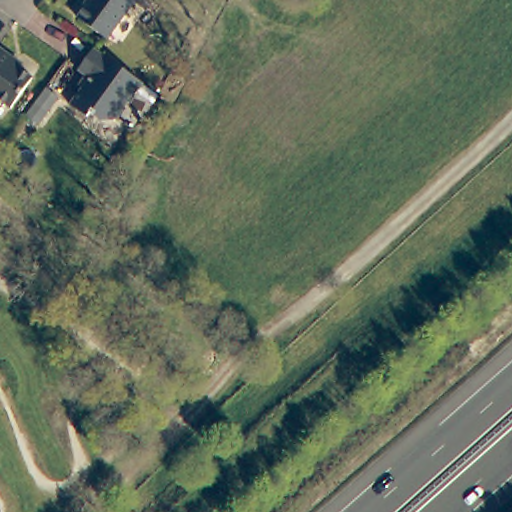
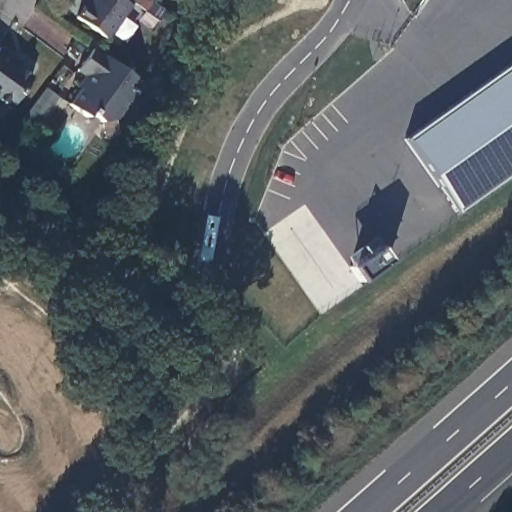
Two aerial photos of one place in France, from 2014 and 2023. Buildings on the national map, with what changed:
unchanged [(69,19),(82,1),(80,0),(128,0),(98,41),(69,19)]
unchanged [(0,103),(0,49),(17,61),(14,65),(33,79),(10,109),(0,103)]
unchanged [(91,115),(88,119),(70,106),(86,85),(86,76),(79,72),(95,50),(143,86),(117,121),(103,124),(97,119),(91,115)]
new [(512,191),(456,229),(403,150),(512,74),(512,191)]

